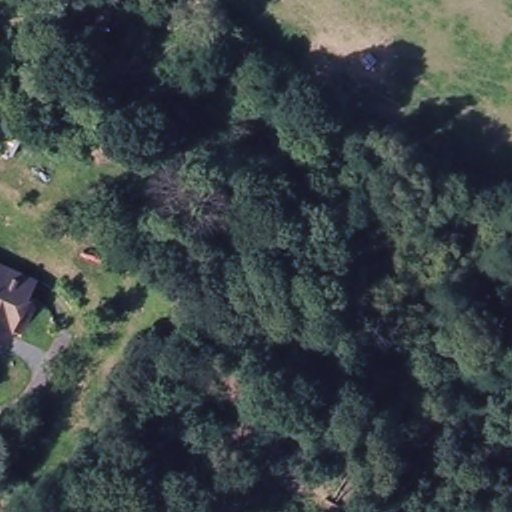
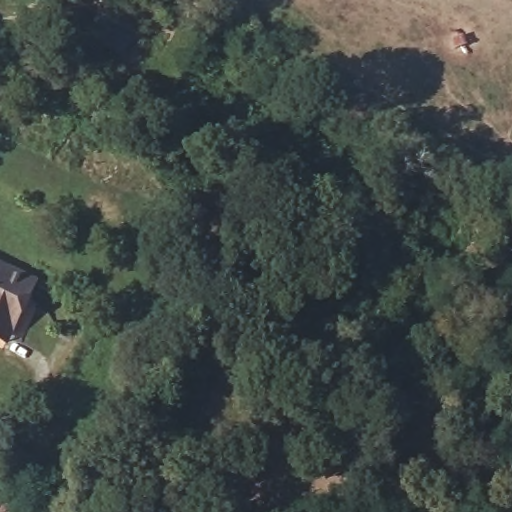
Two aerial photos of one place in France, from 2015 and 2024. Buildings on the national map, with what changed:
unchanged [(4,345),(0,343),(0,262),(39,283),(4,345)]
unchanged [(0,353),(0,343),(4,345),(0,353)]

